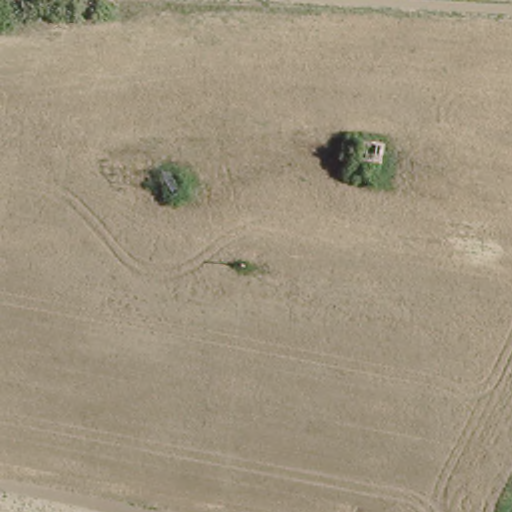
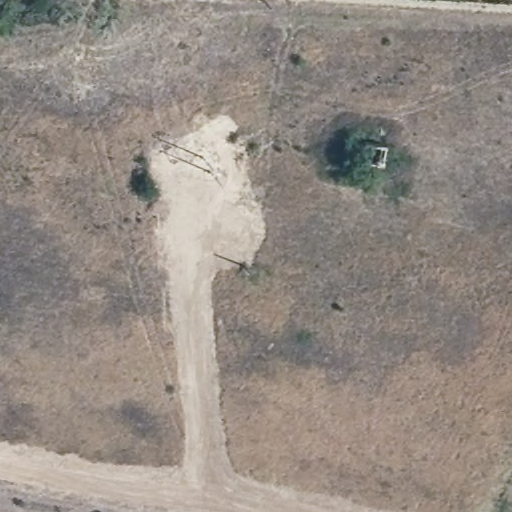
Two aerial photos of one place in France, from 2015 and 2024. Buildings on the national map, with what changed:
unchanged [(361,146),(382,149),(375,169),(358,167),(361,146)]

